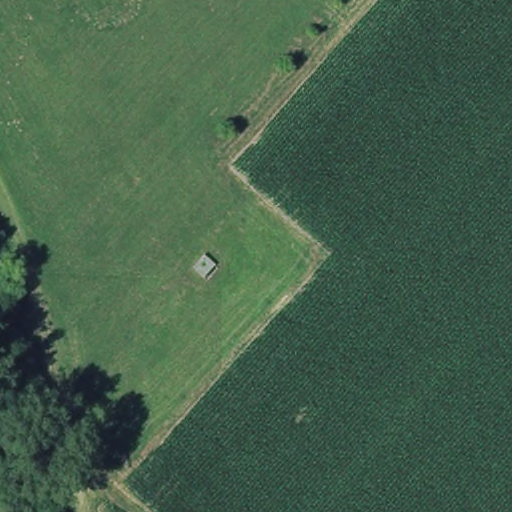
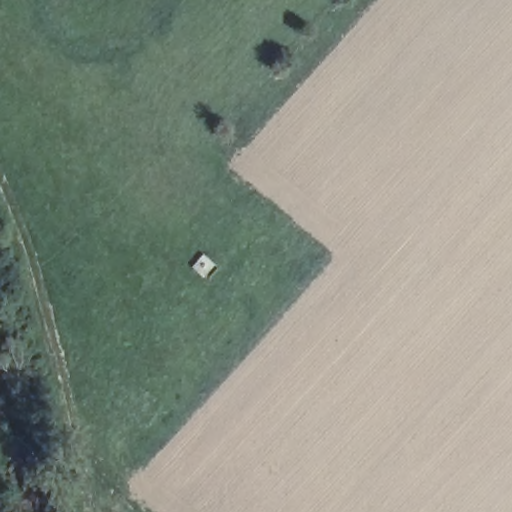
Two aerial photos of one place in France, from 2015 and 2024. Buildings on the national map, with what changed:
unchanged [(193,261),(205,272),(193,286),(181,276),(193,261)]

